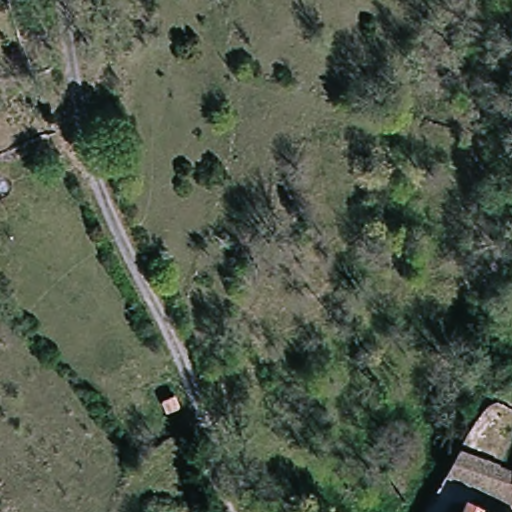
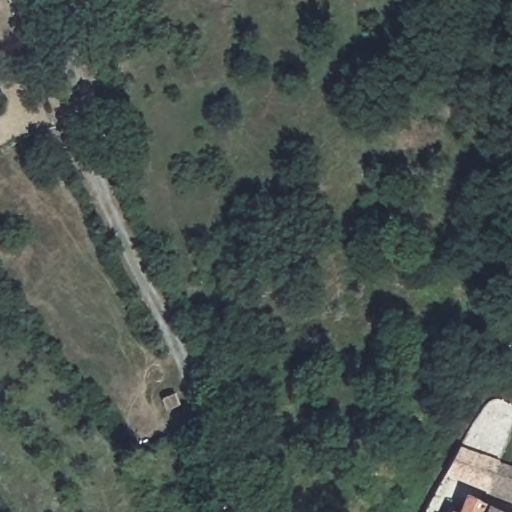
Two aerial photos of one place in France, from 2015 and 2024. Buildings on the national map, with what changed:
unchanged [(499,463),(512,469),(512,499),(489,490),(492,485),(452,466),(461,450),(499,463)]
unchanged [(459,497),(476,507),(486,512),(451,512),(459,497)]

